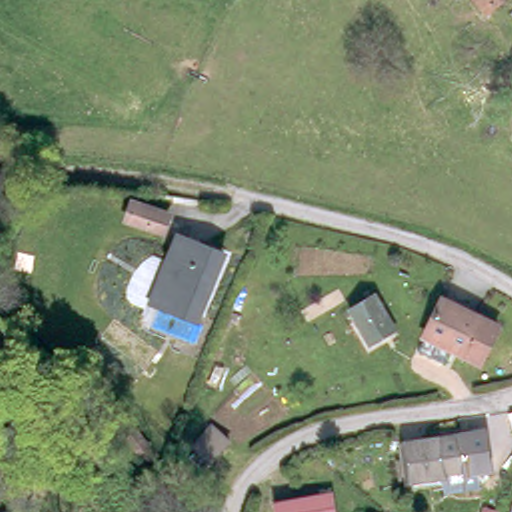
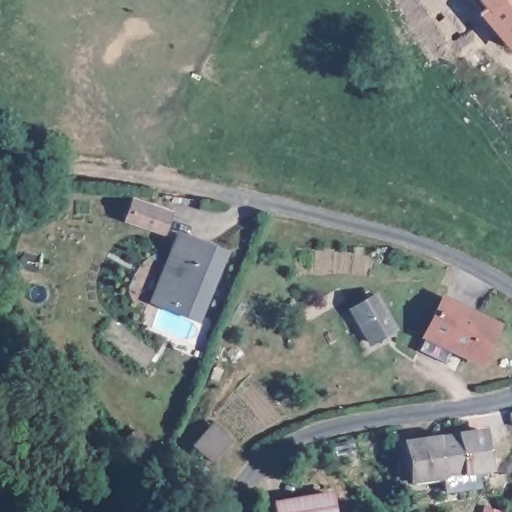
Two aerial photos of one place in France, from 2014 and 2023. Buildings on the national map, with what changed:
unchanged [(473,0),(484,0),(477,6),(473,0)]
new [(512,0),(512,51),(509,54),(477,17),(495,0),(512,0)]
unchanged [(157,234),(125,222),(130,204),(163,215),(157,234)]
unchanged [(163,260),(174,233),(221,253),(197,317),(188,319),(155,305),(146,302),(163,260)]
unchanged [(393,331),(374,343),(352,308),(372,298),(393,331)]
unchanged [(420,346),(425,335),(443,299),(497,326),(479,362),(452,348),(446,359),(420,346)]
unchanged [(219,436),(201,428),(210,402),(228,409),(219,436)]
unchanged [(464,466),(472,465),(475,484),(443,488),(441,472),(406,476),(402,439),(459,432),(464,466)]
unchanged [(267,510),(319,484),(333,512),(268,512),(267,510)]

